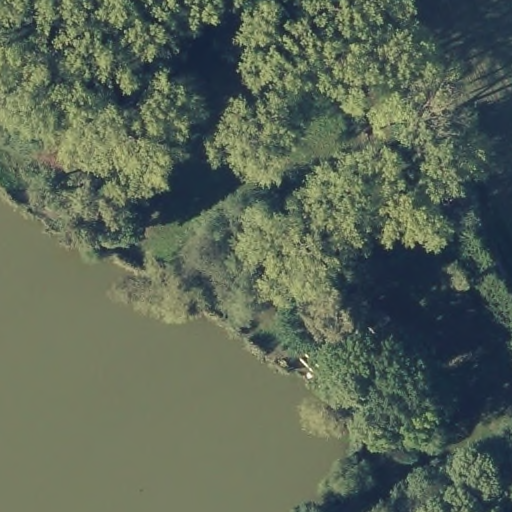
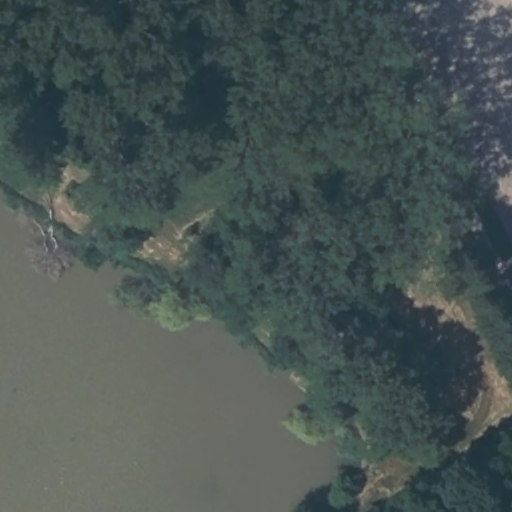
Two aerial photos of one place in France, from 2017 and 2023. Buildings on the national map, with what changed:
unchanged [(380,351),(345,322),(371,296),(401,329),(380,351)]

